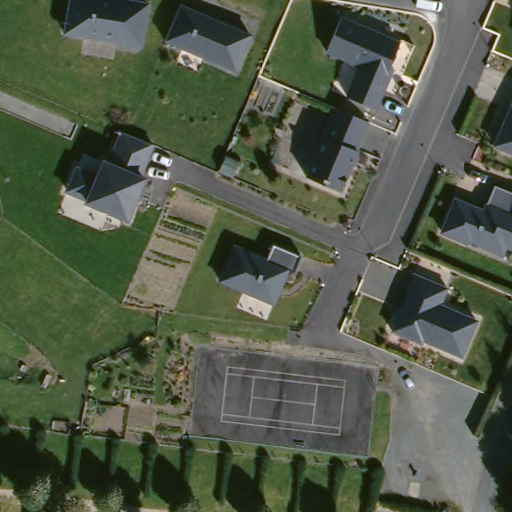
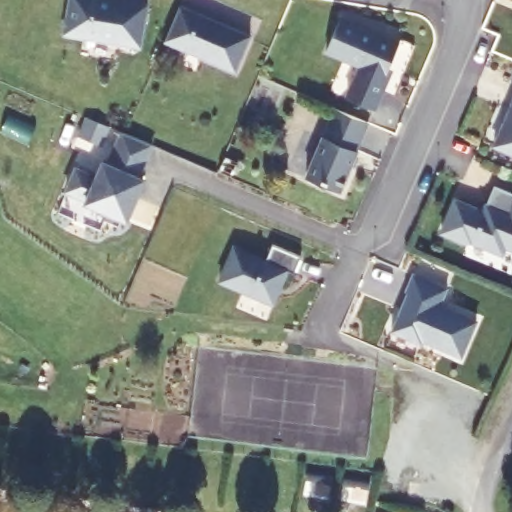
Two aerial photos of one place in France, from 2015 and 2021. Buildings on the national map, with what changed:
unchanged [(146,42),(69,31),(74,0),(153,0),(146,42)]
unchanged [(256,29),(241,65),(169,35),(184,0),(256,29)]
unchanged [(352,90),(366,59),(331,45),(343,16),(403,40),(383,85),(386,87),(380,102),(352,90)]
unchanged [(344,189),(311,175),(339,106),(373,120),(344,189)]
unchanged [(512,112),(512,148),(499,142),(512,112)]
unchanged [(130,133),(157,144),(144,176),(149,178),(133,219),(91,202),(93,199),(72,191),(81,168),(103,177),(108,162),(113,164),(126,132),(126,131),(130,133)]
unchanged [(491,200),(512,209),(512,243),(511,242),(508,249),(478,237),(473,239),(447,228),(461,196),(488,207),(491,200)]
unchanged [(296,271),(290,269),(276,302),(222,280),(236,246),(268,259),(274,242),(303,254),(296,271)]
unchanged [(446,284),(439,301),(476,317),(461,353),(421,336),(420,340),(391,327),(406,289),(404,288),(411,270),(412,270),(446,284)]

